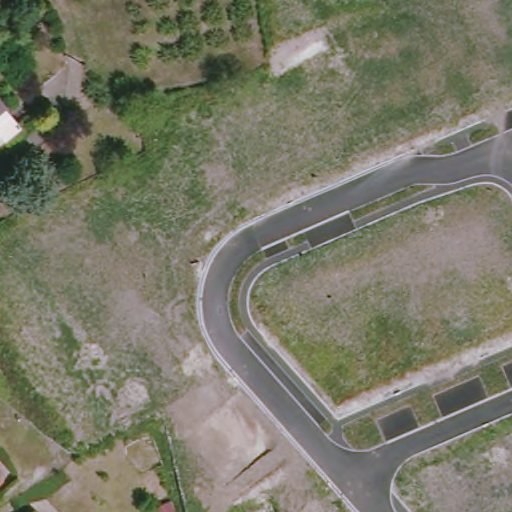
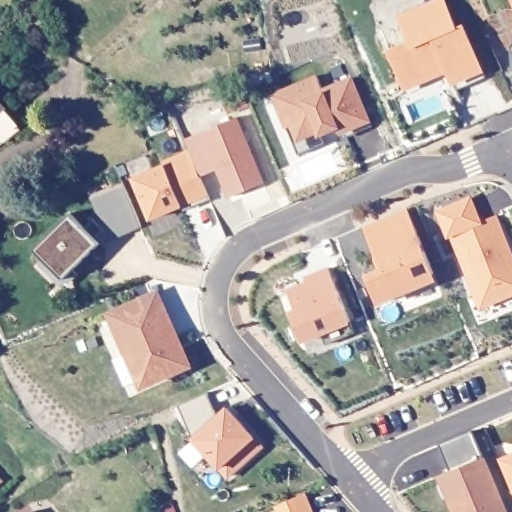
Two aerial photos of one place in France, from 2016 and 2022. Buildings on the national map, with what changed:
new [(396,67),(388,48),(409,39),(399,16),(437,0),(444,0),(455,27),(462,24),(482,69),(452,82),(447,69),(440,72),(420,81),(405,87),(396,67)]
new [(297,138),(291,124),(286,126),(278,108),(284,105),(278,91),(315,75),(322,90),(351,77),(369,119),(339,132),(335,122),(318,130),(297,138)]
unchanged [(12,127),(0,136),(0,114),(12,127)]
new [(235,116),(264,182),(230,196),(202,131),(235,116)]
new [(202,131),(217,168),(201,175),(185,138),(202,131)]
new [(164,165),(162,161),(189,150),(210,199),(191,207),(188,201),(150,217),(134,178),(164,165)]
new [(90,196),(122,183),(141,228),(97,246),(65,279),(37,249),(71,215),(85,227),(93,220),(101,227),(90,196)]
new [(437,210),(470,197),(480,221),(493,215),(512,260),(512,289),(481,302),(452,234),(448,235),(437,210)]
new [(378,303),(375,297),(367,275),(382,269),(377,256),(400,246),(388,218),(407,210),(434,272),(435,279),(378,303)]
new [(366,227),(388,218),(400,246),(378,256),(366,227)]
new [(302,340),(290,311),(295,308),(287,289),(307,281),(305,276),(327,267),(350,321),(302,340)]
new [(167,328),(170,326),(187,364),(143,384),(111,314),(152,295),(167,328)]
new [(354,332),(325,344),(321,332),(350,321),(354,332)]
demolished [(381,350),(375,336),(392,329),(399,343),(381,350)]
new [(256,450),(228,476),(194,437),(179,404),(207,391),(217,415),(227,407),(252,436),(261,446),(256,450)]
new [(449,470),(438,444),(471,429),(506,512),(454,512),(438,475),(449,470)]
new [(512,485),(500,458),(512,453),(512,485)]
new [(312,512),(280,512),(277,504),(304,493),(312,512)]
unchanged [(31,512),(32,511),(33,512),(31,512)]

